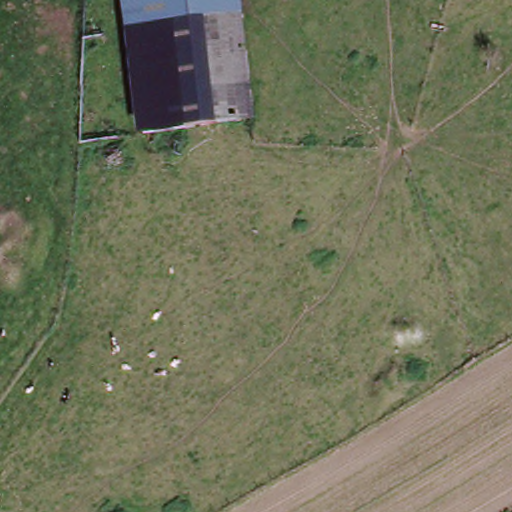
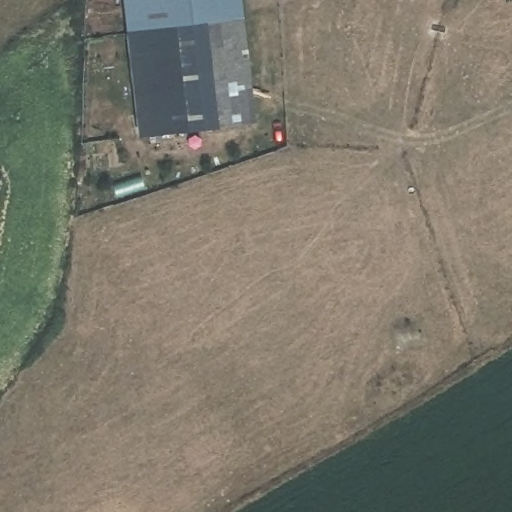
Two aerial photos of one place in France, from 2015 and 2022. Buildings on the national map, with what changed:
unchanged [(245,0),(246,10),(190,18),(131,26),(128,0),(245,0)]
unchanged [(201,126),(141,134),(131,26),(190,18),(246,10),(259,117),(201,126)]

